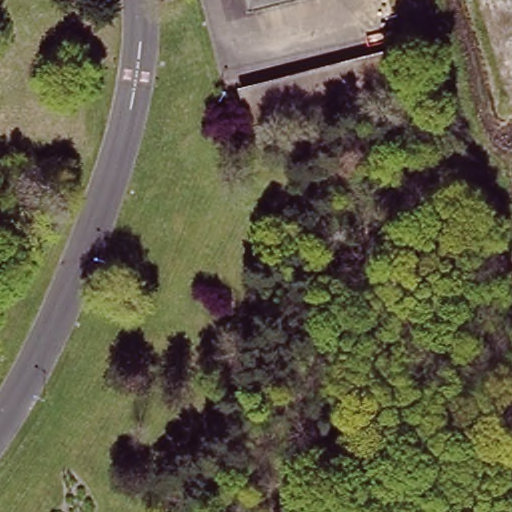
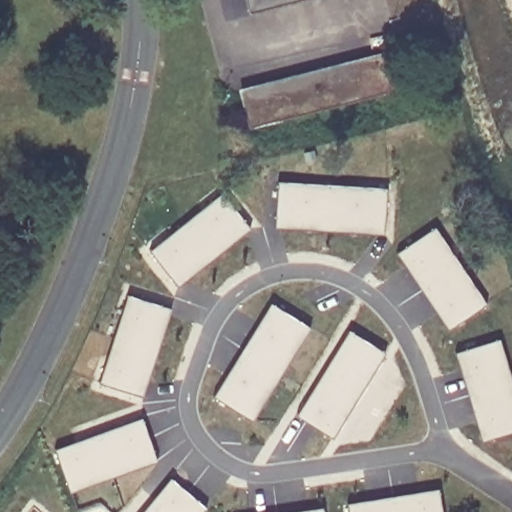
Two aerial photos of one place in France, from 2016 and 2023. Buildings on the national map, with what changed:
unchanged [(247,0),(290,0),(249,10),(247,0)]
unchanged [(240,88),(399,48),(408,85),(249,124),(240,88)]
new [(276,227),(279,180),(389,186),(386,233),(276,227)]
new [(178,284),(150,248),(223,191),(253,228),(178,284)]
new [(449,328),(397,251),(436,225),(488,301),(449,328)]
new [(143,394),(99,381),(127,292),(173,306),(143,394)]
new [(253,419),(213,395),(271,301),(311,326),(253,419)]
new [(334,436),(296,413),(349,327),(387,350),(334,436)]
new [(512,431),(482,440),(456,350),(500,337),(512,377),(512,431)]
new [(70,490),(55,446),(143,416),(159,460),(70,490)]
new [(201,512),(141,512),(171,476),(206,506),(201,512)]
new [(346,500),(439,486),(442,512),(348,512),(346,500)]
new [(324,512),(274,512),(323,504),(324,512)]

